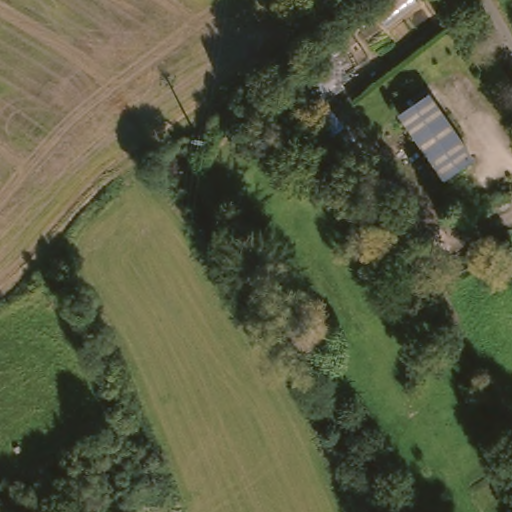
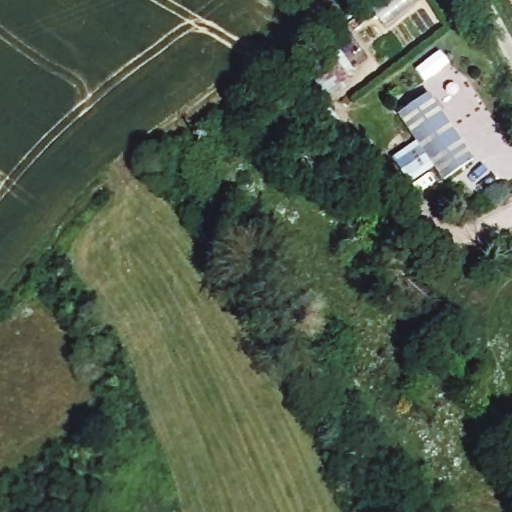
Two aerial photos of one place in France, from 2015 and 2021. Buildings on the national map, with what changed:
unchanged [(438,91),(475,153),(443,171),(406,110),(438,91)]

